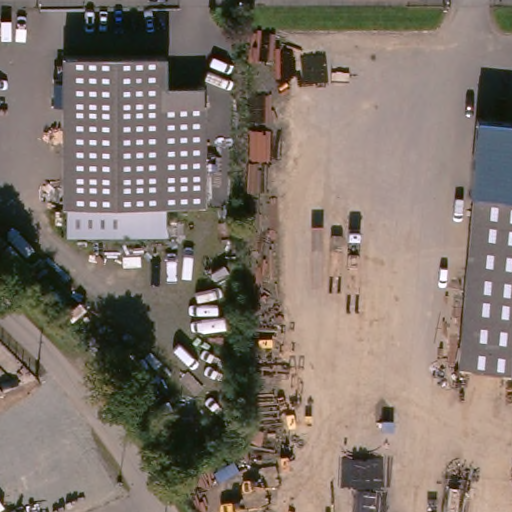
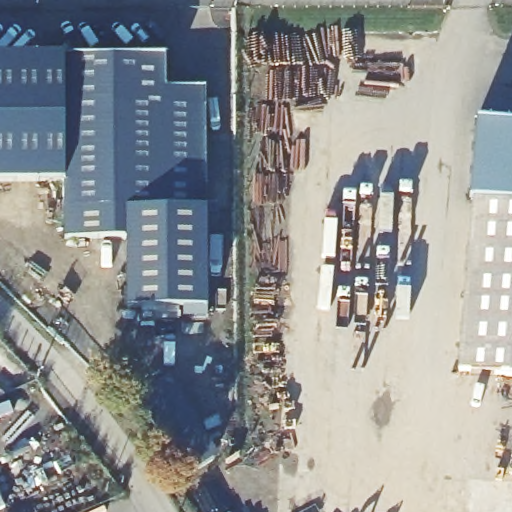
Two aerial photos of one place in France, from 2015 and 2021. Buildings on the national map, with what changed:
new [(64,181),(0,181),(0,55),(64,54),(64,181)]
unchanged [(69,207),(64,207),(64,54),(165,54),(165,87),(205,87),(206,206),(165,206),(69,207)]
unchanged [(462,373),(476,199),(472,199),(479,121),(512,124),(512,377),(462,373)]
new [(69,207),(165,206),(206,206),(207,308),(207,318),(182,318),(182,308),(179,308),(179,322),(140,322),(140,309),(126,309),(126,239),(64,239),(64,207),(69,207)]
new [(210,449),(190,464),(137,390),(156,376),(210,449)]

